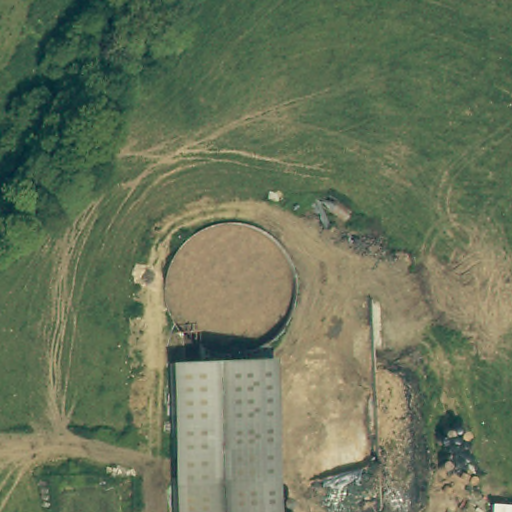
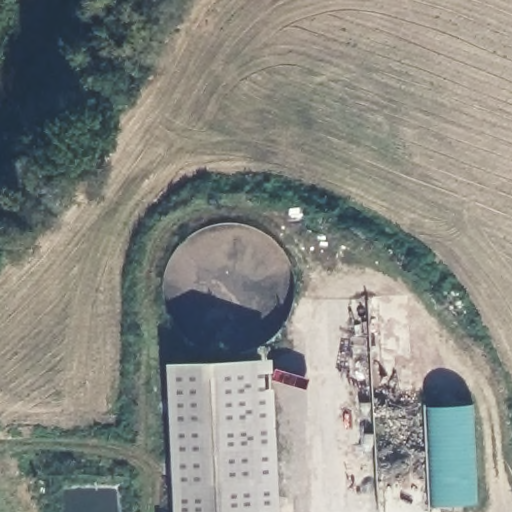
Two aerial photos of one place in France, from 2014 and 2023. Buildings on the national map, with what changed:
unchanged [(261,502),(282,501),(282,512),(177,512),(171,361),(255,358),(261,502)]
new [(433,505),(428,405),(475,403),(480,504),(433,505)]

